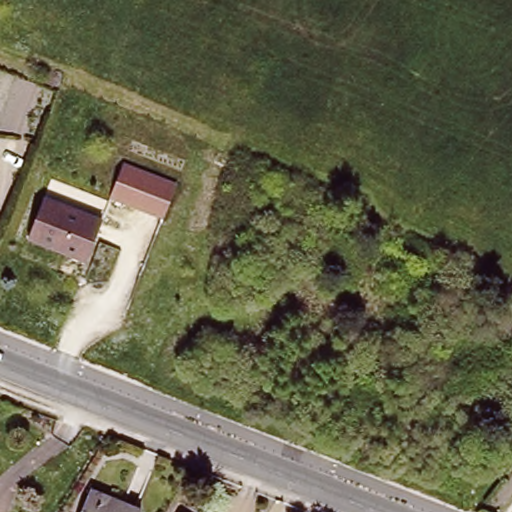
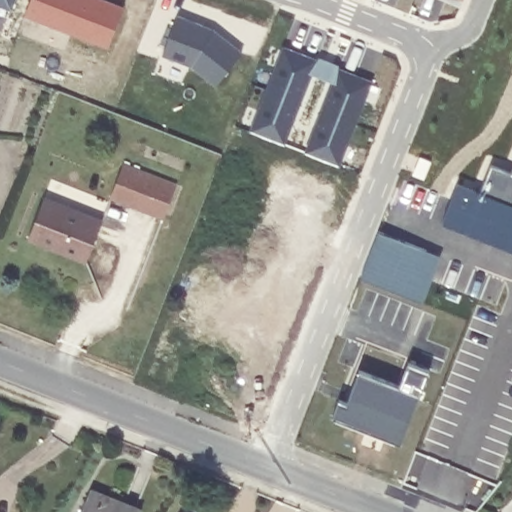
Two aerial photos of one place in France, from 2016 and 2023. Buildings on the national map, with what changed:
new [(0,8),(0,0),(15,0),(10,12),(0,8)]
new [(108,0),(125,7),(110,47),(26,14),(32,0),(108,0)]
new [(178,17),(215,32),(241,57),(212,87),(193,67),(163,56),(178,17)]
new [(263,104),(265,105),(277,77),(275,76),(286,48),(318,61),(307,89),(306,89),(295,116),(296,117),(285,145),(253,132),(263,104)]
new [(318,126),(320,127),(332,98),(330,97),(340,70),(373,82),(362,111),(360,110),(350,137),(351,139),(340,167),(307,154),(318,126)]
unchanged [(110,196),(125,162),(178,184),(162,217),(110,196)]
unchanged [(28,232),(45,190),(103,213),(86,256),(28,232)]
new [(387,234),(435,252),(416,298),(370,280),(387,234)]
new [(340,400),(348,403),(362,369),(402,385),(411,361),(431,368),(401,443),(334,417),(340,400)]
unchanged [(95,482),(142,502),(139,512),(83,512),(95,482)]
unchanged [(181,510),(185,512),(180,512),(181,510)]

